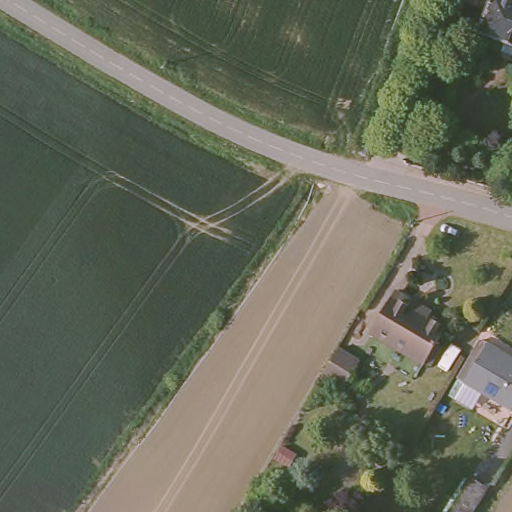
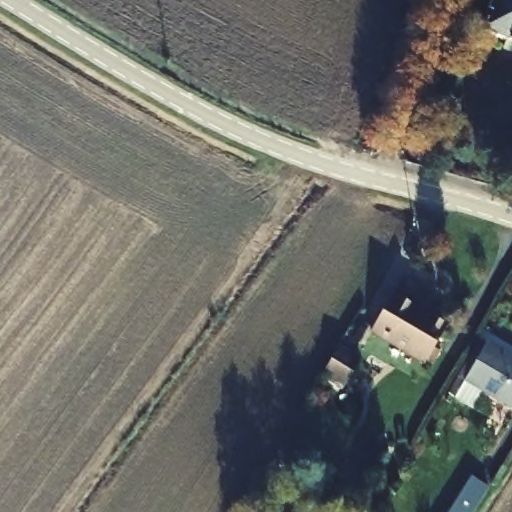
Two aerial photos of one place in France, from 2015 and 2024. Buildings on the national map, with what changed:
unchanged [(488,7),(470,0),(512,0),(512,42),(480,30),(488,7)]
unchanged [(429,359),(375,328),(399,288),(425,303),(437,310),(433,318),(449,326),(429,359)]
unchanged [(512,356),(512,404),(510,407),(462,379),(485,340),(512,356)]
unchanged [(348,385),(329,373),(345,345),(365,358),(348,385)]
unchanged [(489,484),(471,512),(447,512),(470,473),(489,484)]

